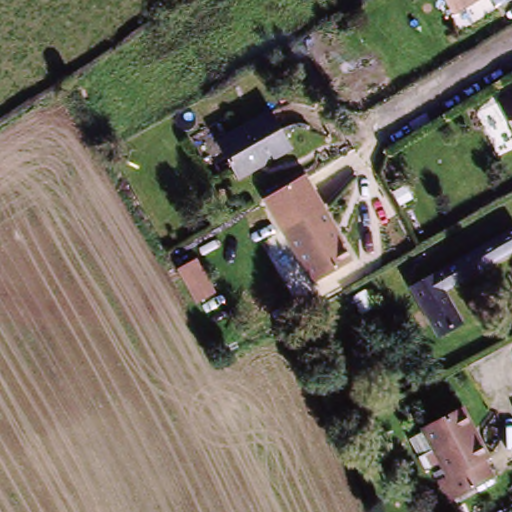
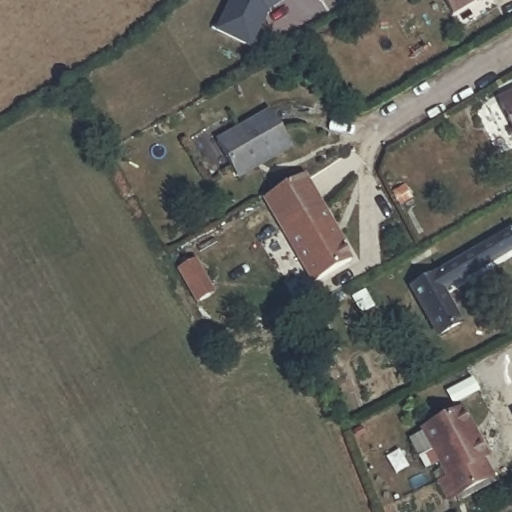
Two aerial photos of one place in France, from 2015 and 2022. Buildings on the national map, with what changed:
new [(251,48),(215,29),(229,0),(287,0),(269,11),(251,48)]
unchanged [(480,0),(453,15),(445,0),(480,0)]
unchanged [(512,93),(512,130),(497,101),(512,93)]
unchanged [(213,136),(269,109),(288,147),(271,155),(270,154),(232,173),(213,136)]
unchanged [(337,225),(335,227),(340,237),(342,236),(346,242),(343,243),(353,260),(314,280),(264,199),(307,172),(326,206),(337,225)]
unchanged [(442,284),(434,268),(512,225),(512,247),(442,284)]
unchanged [(409,282),(434,268),(442,284),(461,319),(437,332),(409,282)]
unchanged [(453,471),(427,424),(469,401),(494,448),(487,452),(498,475),(459,495),(452,499),(441,477),(448,473),(453,471)]

